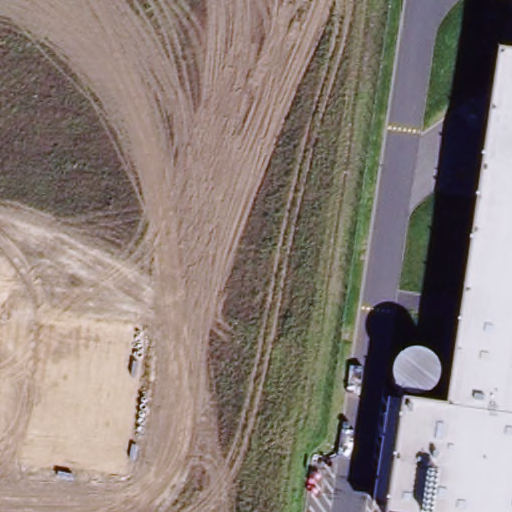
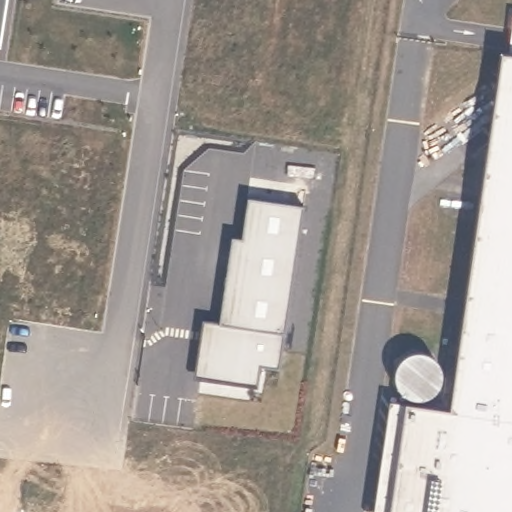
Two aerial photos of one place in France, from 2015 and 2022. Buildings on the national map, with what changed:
unchanged [(405,396),(450,402),(501,46),(512,48),(512,512),(373,512),(390,395),(405,396)]
new [(282,333),(277,369),(260,367),(258,388),(194,380),(202,322),(219,324),(230,238),(240,239),(245,198),(301,205),(282,333)]

